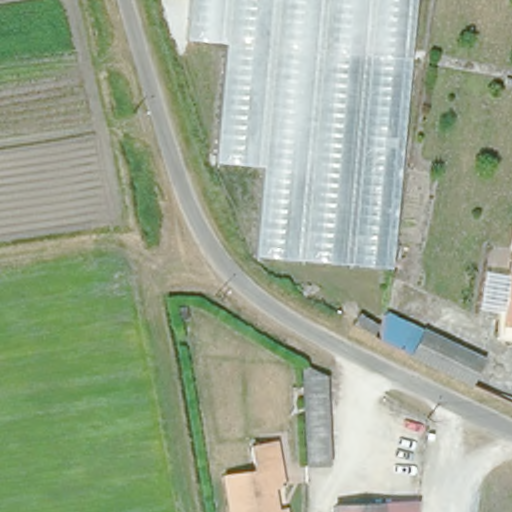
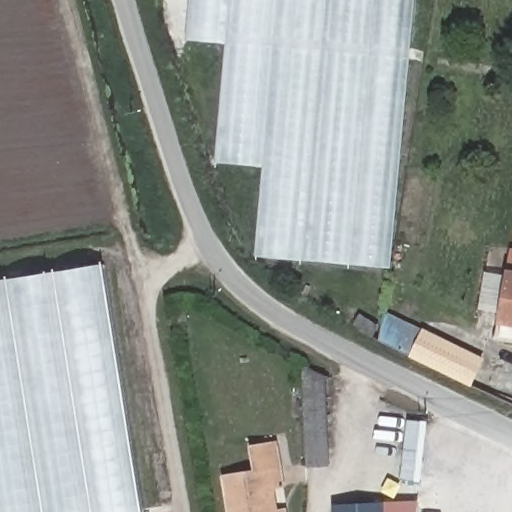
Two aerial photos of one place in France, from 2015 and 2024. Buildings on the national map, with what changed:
unchanged [(391,268),(252,254),(261,165),(213,160),(225,41),(181,38),(184,0),(413,0),(391,268)]
new [(143,512),(0,512),(0,280),(102,263),(143,512)]
unchanged [(503,339),(512,296),(512,341),(503,339)]
unchanged [(385,321),(393,324),(396,319),(410,324),(412,321),(473,352),(461,377),(377,336),(385,321)]
unchanged [(313,374),(335,374),(339,462),(317,462),(313,374)]
unchanged [(259,473),(254,448),(279,443),(284,468),(287,484),(280,485),(285,512),(247,512),(240,477),(259,473)]
unchanged [(422,502),(421,512),(391,512),(390,503),(422,502)]
unchanged [(390,503),(391,512),(342,512),(342,504),(390,503)]

